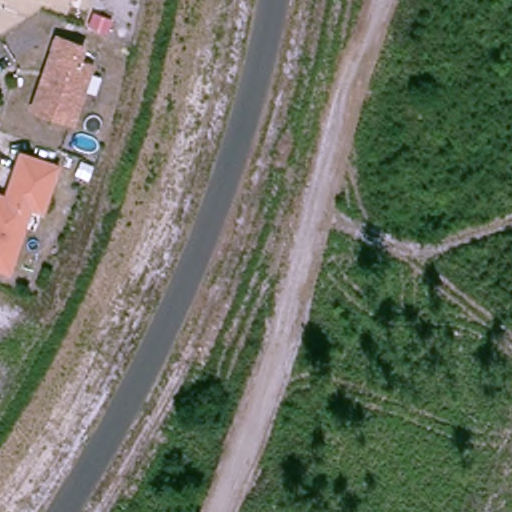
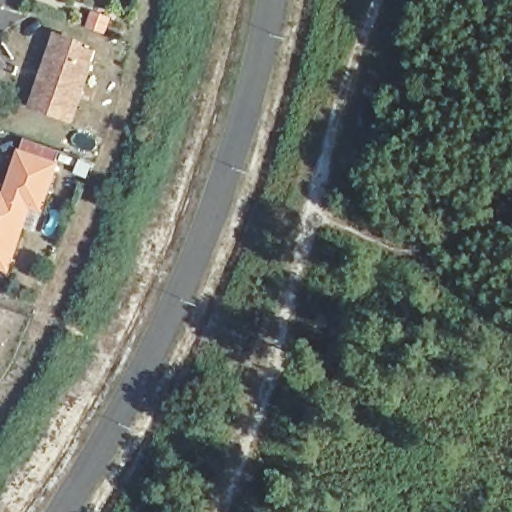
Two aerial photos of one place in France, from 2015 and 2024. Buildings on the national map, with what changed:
unchanged [(82,42),(77,56),(90,61),(70,118),(31,104),(56,33),(82,42)]
unchanged [(39,211),(28,207),(4,270),(0,268),(0,195),(4,197),(9,182),(19,154),(55,167),(39,211)]

